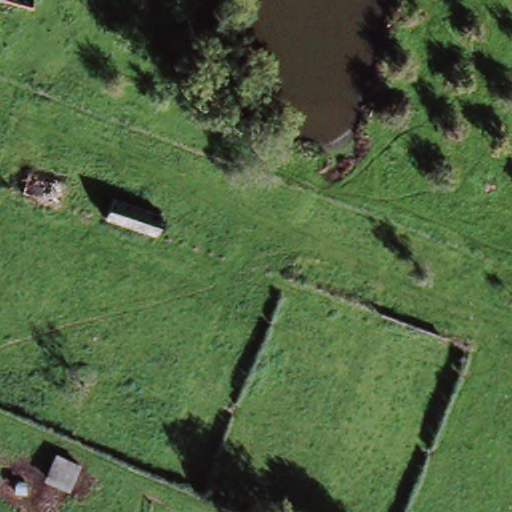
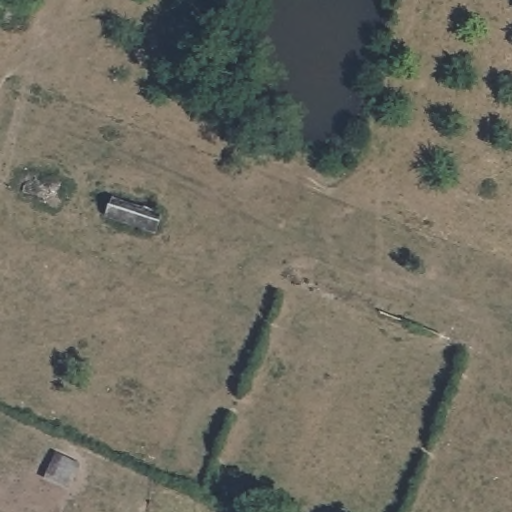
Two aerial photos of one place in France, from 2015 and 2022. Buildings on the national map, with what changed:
unchanged [(35,0),(28,12),(0,6),(0,0),(35,0)]
unchanged [(63,210),(26,198),(34,176),(72,189),(63,210)]
unchanged [(163,239),(113,222),(120,202),(170,221),(163,239)]

